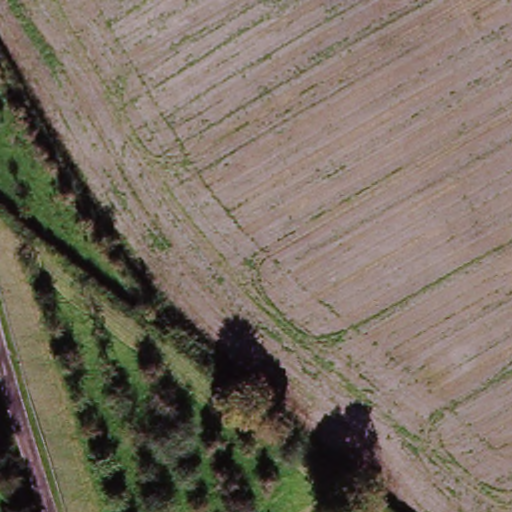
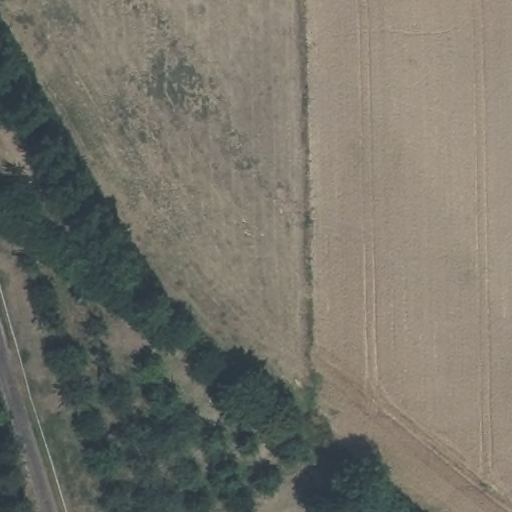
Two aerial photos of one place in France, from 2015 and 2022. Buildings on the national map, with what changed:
[]

